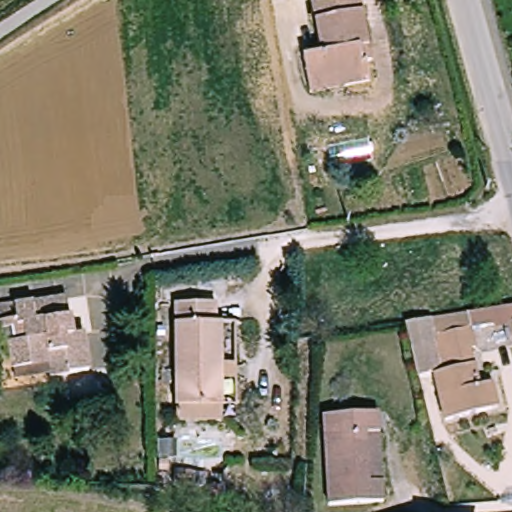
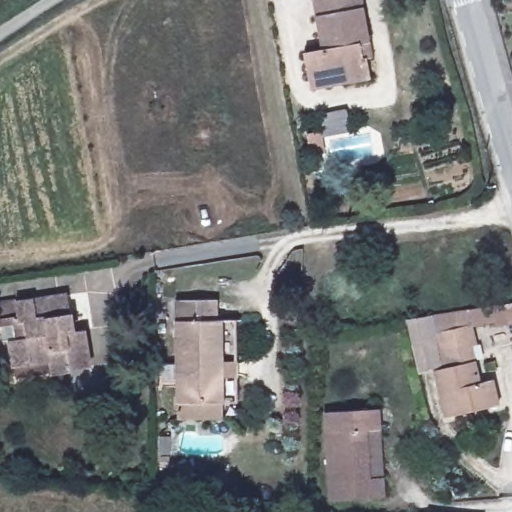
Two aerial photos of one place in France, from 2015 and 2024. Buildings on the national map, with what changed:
unchanged [(303,55),(322,52),(313,0),(360,0),(369,45),(371,58),(364,59),(369,81),(351,84),(309,92),(307,79),(303,55)]
unchanged [(53,376),(51,365),(16,370),(13,343),(28,341),(26,326),(1,331),(0,324),(0,306),(16,303),(17,305),(19,305),(70,298),(73,317),(75,335),(85,333),(90,371),(53,376)]
unchanged [(176,420),(176,406),(176,300),(216,300),(216,322),(221,322),(222,406),(222,420),(176,420)]
unchanged [(512,303),(512,319),(474,325),(474,328),(479,348),(474,350),(477,365),(481,380),(476,381),(478,387),(494,382),(501,408),(448,421),(437,374),(422,377),(409,321),(512,303)]
unchanged [(382,432),(368,432),(371,480),(384,480),(386,501),(331,503),(326,413),(381,411),(382,432)]
unchanged [(178,483),(178,482),(178,470),(198,470),(198,484),(197,484),(192,484),(178,483)]

